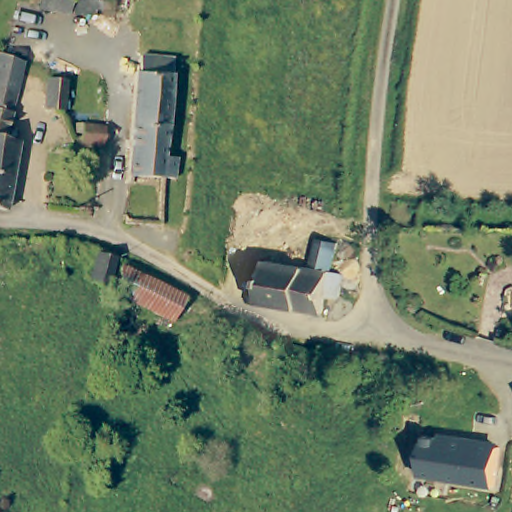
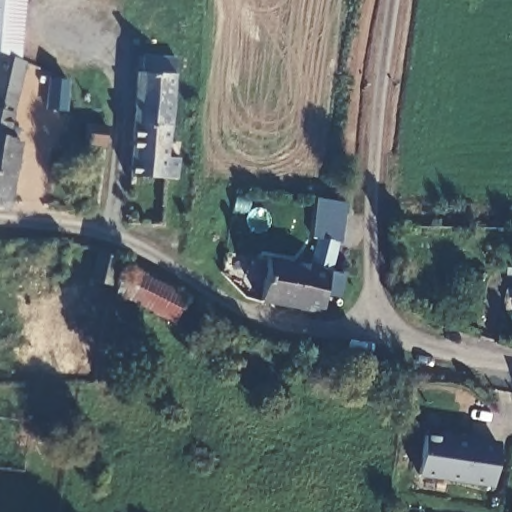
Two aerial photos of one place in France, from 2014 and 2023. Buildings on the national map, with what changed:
new [(22,59),(18,57),(19,54),(16,53),(0,46),(0,0),(26,0),(22,59)]
unchanged [(4,133),(15,135),(1,206),(0,205),(0,46),(16,53),(19,54),(4,133)]
unchanged [(168,178),(129,176),(139,69),(177,71),(168,178)]
unchanged [(42,104),(46,74),(66,77),(62,106),(42,104)]
unchanged [(101,151),(81,149),(82,131),(103,132),(101,151)]
new [(308,236),(314,197),(344,203),(338,243),(332,242),(312,238),(308,236)]
unchanged [(322,292),(318,312),(242,298),(247,268),(258,270),(261,257),(307,266),(312,238),(332,242),(327,271),(341,273),(341,295),(322,292)]
demolished [(56,282),(37,281),(39,246),(58,247),(56,282)]
unchanged [(108,283),(91,279),(97,255),(114,258),(108,283)]
unchanged [(116,296),(121,267),(190,298),(174,320),(116,296)]
unchanged [(438,437),(440,432),(500,441),(492,488),(419,477),(424,435),(438,437)]

